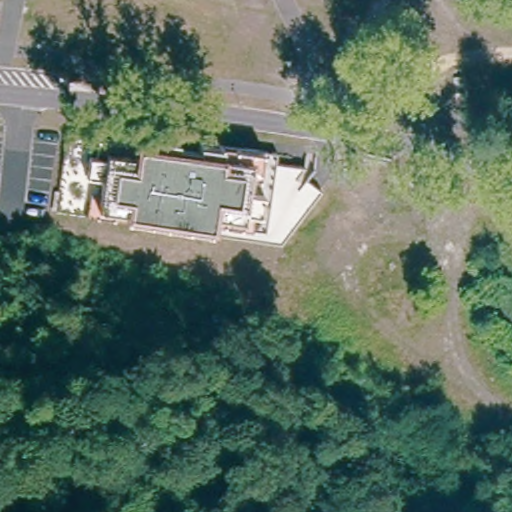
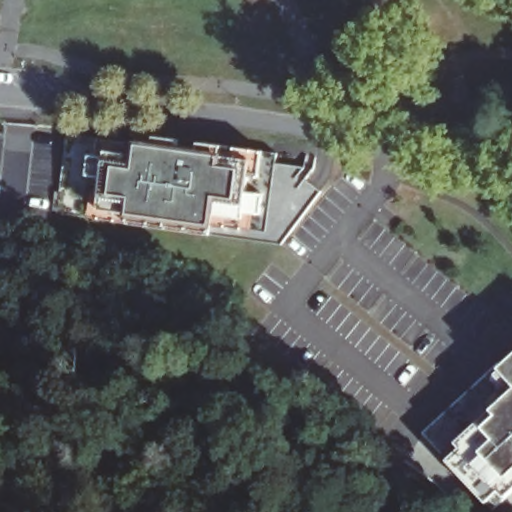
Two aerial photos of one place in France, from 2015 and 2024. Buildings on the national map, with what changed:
unchanged [(312,177),(328,189),(327,190),(288,242),(264,239),(62,211),(62,208),(59,208),(61,188),(65,189),(74,130),(160,142),(161,132),(185,135),(184,145),(205,148),(206,138),(284,149),(282,159),(298,161),(320,165),(312,177)]
new [(501,492),(486,503),(451,462),(448,464),(425,434),(502,368),(512,359),(512,491),(506,497),(501,492)]

